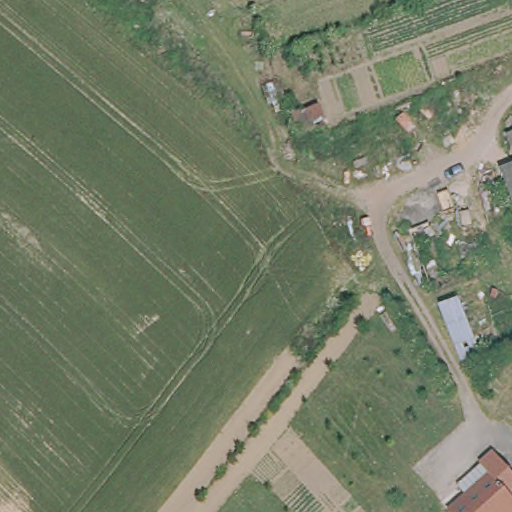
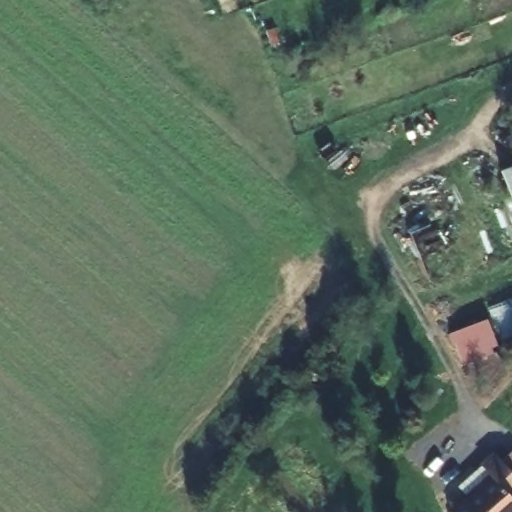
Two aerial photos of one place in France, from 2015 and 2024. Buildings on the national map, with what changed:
unchanged [(512,136),(512,166),(511,167),(501,140),(512,136)]
unchanged [(512,166),(512,209),(506,191),(499,172),(511,167),(512,166)]
new [(493,348),(494,355),(463,366),(451,332),(489,319),(499,346),(493,348)]
unchanged [(494,463),(484,452),(498,442),(512,458),(512,512),(507,512),(506,511),(504,512),(461,512),(458,508),(452,501),(465,488),(494,463)]

